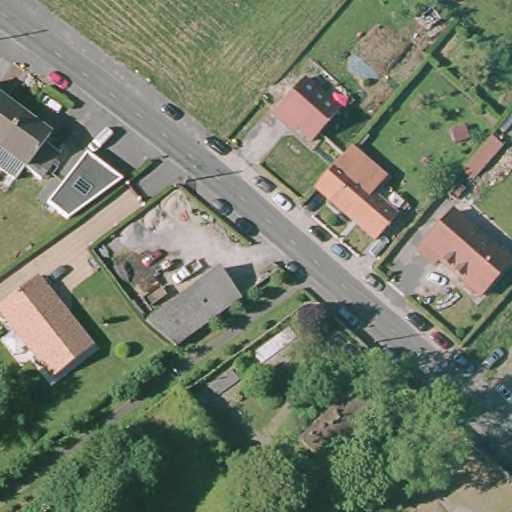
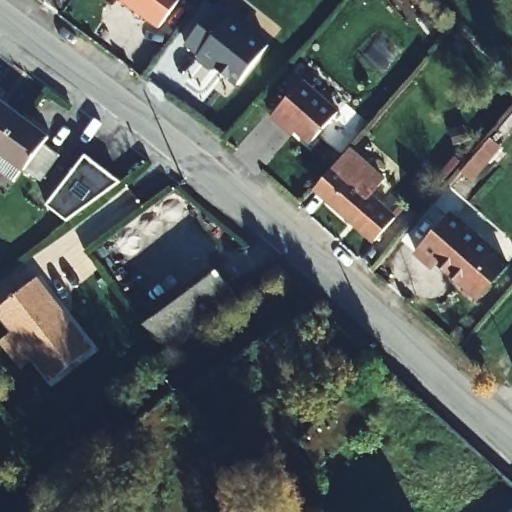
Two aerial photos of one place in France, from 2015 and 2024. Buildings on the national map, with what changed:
new [(116,0),(185,0),(159,29),(116,0)]
new [(270,51),(236,92),(185,47),(218,7),(270,51)]
unchanged [(303,84),(339,116),(310,147),(286,126),(284,129),(271,117),(303,84)]
unchanged [(0,142),(0,92),(23,110),(0,142)]
unchanged [(50,130),(45,136),(62,149),(43,174),(25,161),(7,186),(0,181),(0,142),(23,110),(50,130)]
unchanged [(349,152),(382,181),(368,197),(392,219),(371,242),(314,191),(349,152)]
unchanged [(41,207),(79,156),(105,175),(73,199),(52,215),(41,207)]
unchanged [(456,217),(509,262),(474,301),(468,295),(469,287),(443,264),(438,268),(422,254),(456,217)]
unchanged [(173,346),(145,321),(212,269),(236,299),(173,346)]
unchanged [(48,382),(1,320),(0,318),(0,304),(33,278),(41,290),(88,352),(48,382)]
unchanged [(512,512),(508,512),(512,508),(512,512)]

